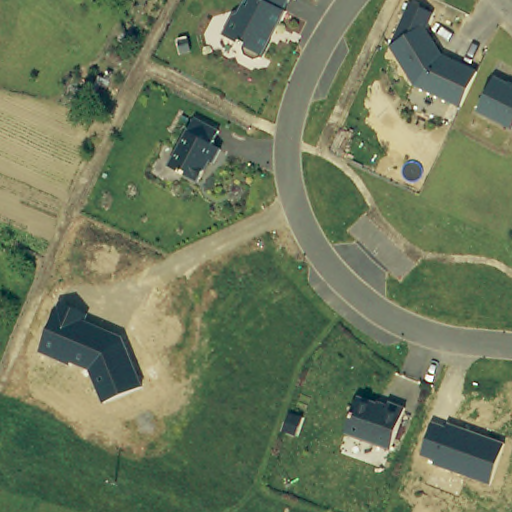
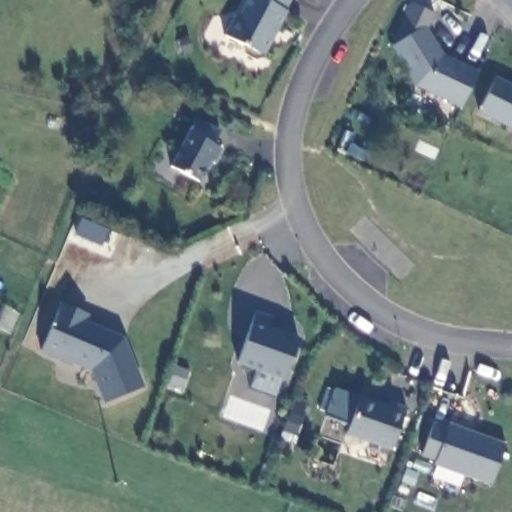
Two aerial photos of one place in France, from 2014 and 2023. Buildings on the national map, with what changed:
unchanged [(284,10),(287,11),(263,58),(255,61),(246,56),(245,48),(224,37),(234,14),(240,14),(247,0),(290,0),(284,10)]
unchanged [(412,3),(434,14),(426,32),(442,56),(478,73),(462,108),(416,87),(390,48),(412,3)]
unchanged [(512,86),(512,129),(478,113),(494,77),(512,86)]
unchanged [(220,131),(213,146),(223,151),(215,165),(209,163),(199,184),(170,167),(189,132),(195,118),(220,131)]
unchanged [(59,303),(88,315),(85,322),(124,338),(144,389),(103,404),(90,371),(72,363),(70,366),(39,353),(59,303)]
new [(285,380),(279,378),(274,397),(250,388),(258,371),(236,362),(255,312),(273,319),(269,326),(298,338),(285,380)]
unchanged [(387,408),(389,402),(406,408),(392,450),(346,436),(359,398),(387,408)]
unchanged [(447,429),(448,425),(504,445),(491,486),(434,466),(436,461),(422,455),(432,424),(447,429)]

